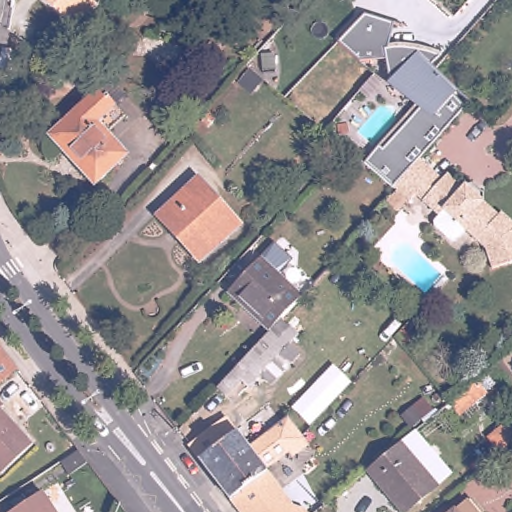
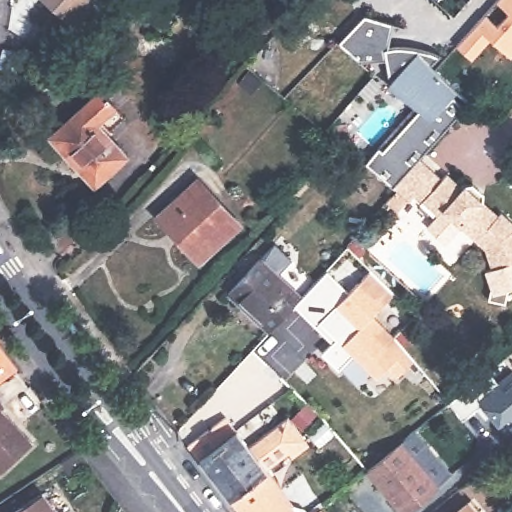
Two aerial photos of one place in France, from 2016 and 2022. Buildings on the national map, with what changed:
unchanged [(70,22),(44,0),(91,0),(70,22)]
new [(510,58),(490,41),(470,61),(455,47),(496,0),(512,0),(512,55),(510,58)]
unchanged [(433,64),(468,98),(432,138),(418,154),(391,183),(363,160),(363,159),(370,150),(371,151),(376,144),(380,147),(420,101),(386,75),(383,57),(383,56),(357,58),(335,39),(364,10),(381,16),(392,19),(391,25),(387,44),(395,43),(396,43),(401,42),(410,43),(412,43),(421,45),(430,48),(437,52),(429,60),(433,64)]
unchanged [(0,53),(0,49),(2,49),(14,50),(15,51),(12,70),(0,68),(0,53)]
unchanged [(49,135),(98,89),(113,106),(124,117),(110,129),(107,127),(103,130),(126,155),(94,184),(49,135)]
unchanged [(343,148),(355,158),(346,168),(334,158),(343,148)]
unchanged [(492,263),(486,244),(479,237),(465,225),(455,236),(450,236),(433,221),(433,216),(438,211),(415,190),(407,197),(396,187),(391,183),(418,154),(439,173),(445,166),(463,182),(466,178),(484,194),(480,198),(496,213),(502,206),(505,209),(512,215),(512,257),(492,263)]
unchanged [(155,215),(196,178),(240,225),(198,262),(155,215)]
unchanged [(233,288),(265,253),(306,290),(285,313),(273,326),(233,288)]
new [(325,269),(348,291),(370,269),(393,292),(372,313),(411,360),(395,377),(385,367),(375,378),(351,354),(336,369),(320,352),(334,338),(318,321),(314,325),(293,304),(322,272),(325,269)]
unchanged [(301,328),(236,399),(220,384),(260,340),(273,326),(285,313),(301,328)]
unchanged [(0,381),(0,335),(22,365),(0,381)]
unchanged [(474,380),(483,391),(457,414),(447,402),(474,380)]
unchanged [(4,405),(36,440),(5,470),(0,464),(0,394),(6,402),(4,405)]
unchanged [(234,457),(253,442),(268,429),(292,411),(307,429),(313,438),(302,447),(293,446),(270,465),(298,501),(284,512),(246,512),(217,475),(235,461),(234,457)]
unchanged [(193,442),(230,412),(253,442),(234,457),(235,461),(217,475),(193,442)]
unchanged [(506,421),(512,428),(512,441),(498,452),(486,437),(506,421)]
unchanged [(371,466),(404,438),(441,481),(407,510),(371,466)]
unchanged [(61,512),(10,512),(45,489),(61,512)]
unchanged [(328,502),(316,512),(294,512),(320,492),(328,502)]
unchanged [(482,512),(447,512),(467,495),(482,512)]

